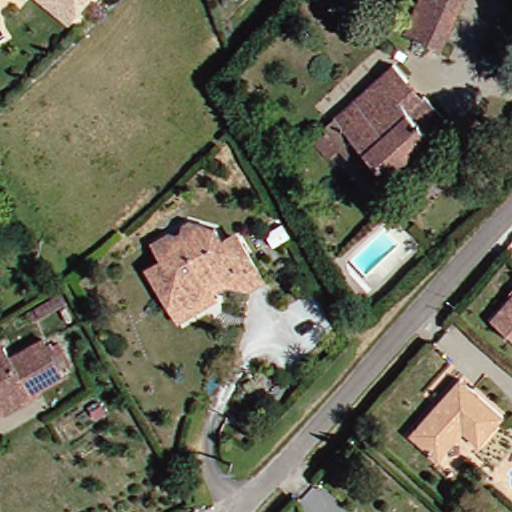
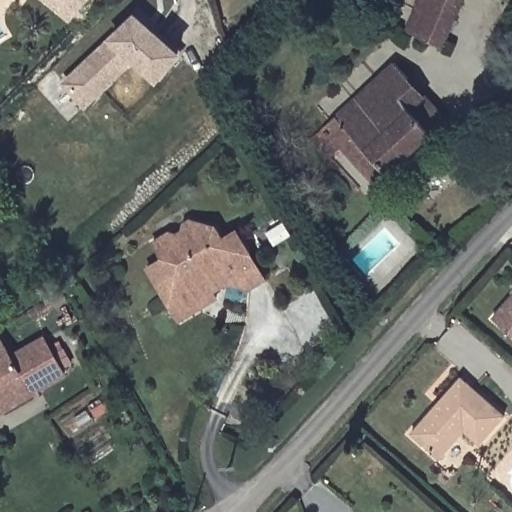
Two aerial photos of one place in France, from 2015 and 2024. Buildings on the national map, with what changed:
unchanged [(45,0),(83,0),(73,12),(68,19),(52,5),(45,0)]
unchanged [(414,0),(458,0),(449,20),(413,4),(414,0)]
unchanged [(437,47),(401,31),(413,4),(449,20),(437,47)]
new [(158,79),(135,59),(86,104),(66,83),(135,17),(157,35),(178,54),(158,79)]
unchanged [(325,150),(311,136),(394,59),(407,74),(425,92),(447,115),(376,182),(339,143),(328,154),(325,150)]
unchanged [(201,305),(174,321),(142,269),(158,260),(148,244),(164,233),(172,235),(177,232),(179,225),(185,220),(211,227),(219,240),(226,241),(234,236),(261,279),(244,289),(214,282),(205,288),(212,298),(201,305)]
unchanged [(266,233),(283,223),(291,235),(274,245),(266,233)]
unchanged [(512,292),(512,341),(488,320),(512,292)]
unchanged [(62,294),(67,302),(34,320),(30,312),(62,294)]
unchanged [(0,408),(0,356),(1,357),(34,338),(55,375),(27,390),(28,392),(0,408)]
unchanged [(500,416),(475,445),(460,431),(435,460),(407,435),(432,405),(436,401),(456,378),(500,416)]

